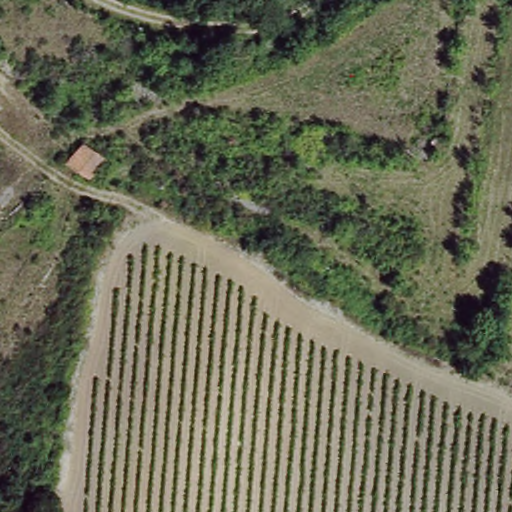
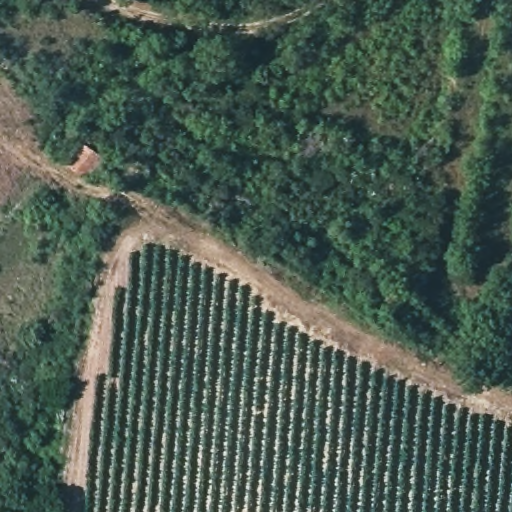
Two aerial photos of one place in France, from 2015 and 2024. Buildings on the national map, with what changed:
unchanged [(68,165),(87,142),(109,158),(91,182),(68,165)]

